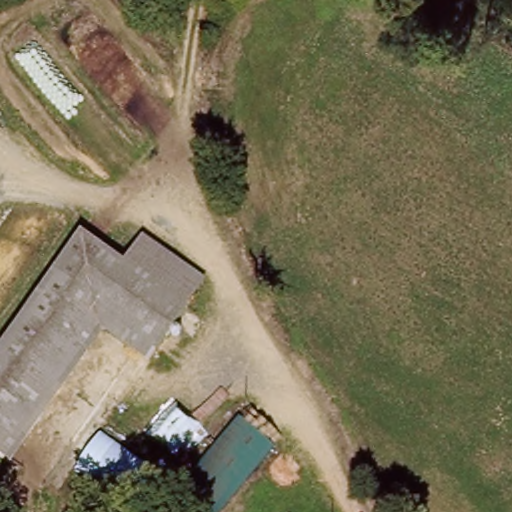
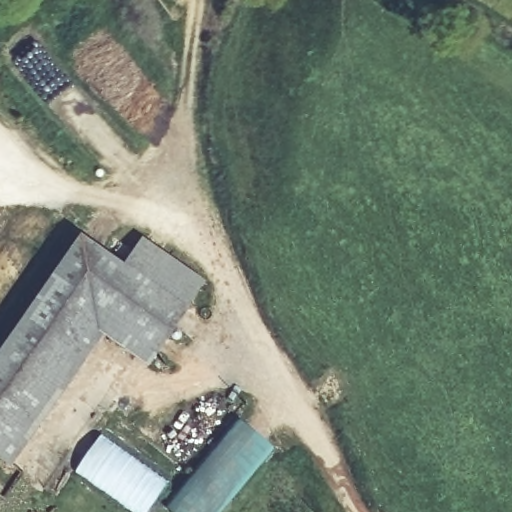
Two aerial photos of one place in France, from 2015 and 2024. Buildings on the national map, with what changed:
unchanged [(151,358),(99,323),(11,456),(0,449),(0,352),(74,240),(118,270),(181,313),(151,358)]
unchanged [(136,243),(199,286),(181,313),(118,270),(136,243)]
unchanged [(168,501),(240,409),(277,439),(219,512),(182,512),(168,501)]
new [(132,504),(129,509),(94,483),(90,474),(80,467),(100,438),(167,486),(148,512),(144,512),(132,504)]

